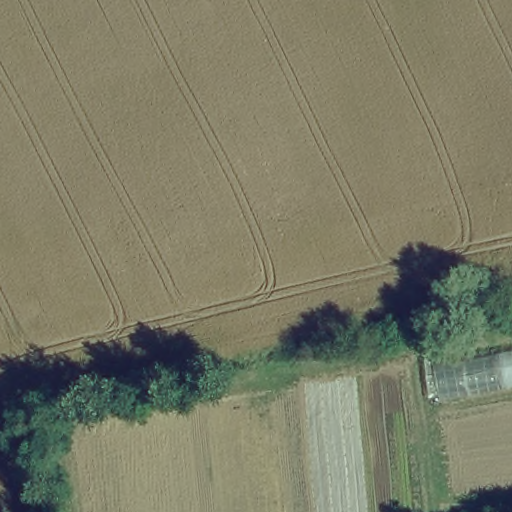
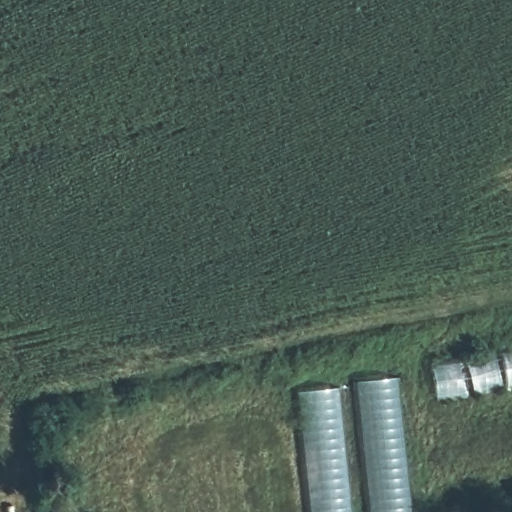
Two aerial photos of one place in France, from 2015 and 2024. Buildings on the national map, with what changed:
unchanged [(432,406),(427,363),(512,347),(512,391),(432,406)]
new [(390,377),(406,512),(309,512),(296,391),(390,377)]

